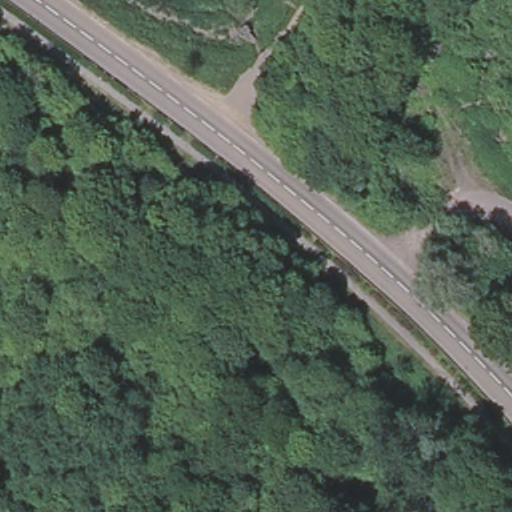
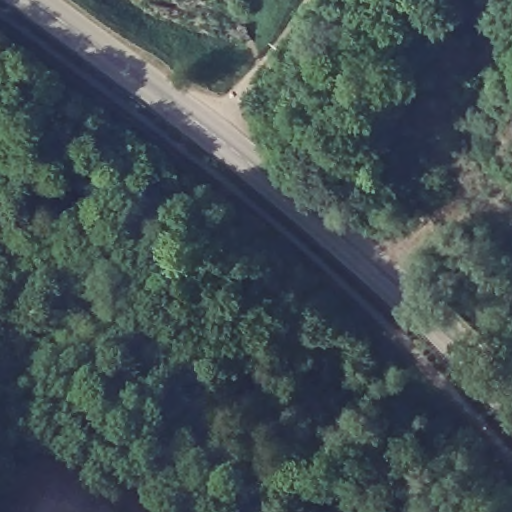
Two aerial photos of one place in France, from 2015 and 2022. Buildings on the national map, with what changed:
unchanged [(0,80),(0,54),(15,64),(2,82),(0,80)]
unchanged [(1,84),(7,89),(0,99),(0,80),(2,82),(1,84)]
unchanged [(4,161),(0,164),(0,157),(4,161)]
unchanged [(117,295),(107,310),(79,291),(89,276),(117,295)]
unchanged [(39,420),(30,432),(21,426),(29,413),(39,420)]
unchanged [(137,512),(98,512),(110,494),(137,512)]

